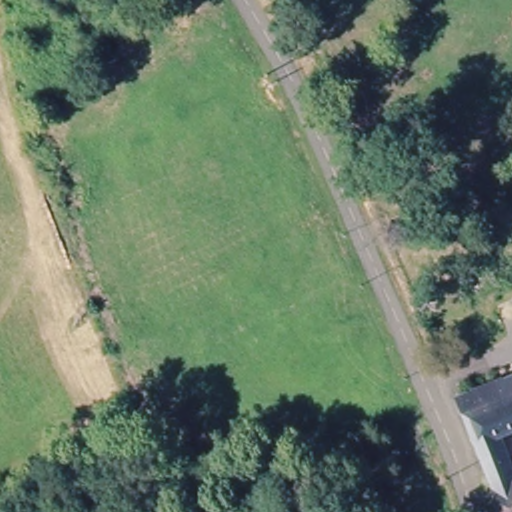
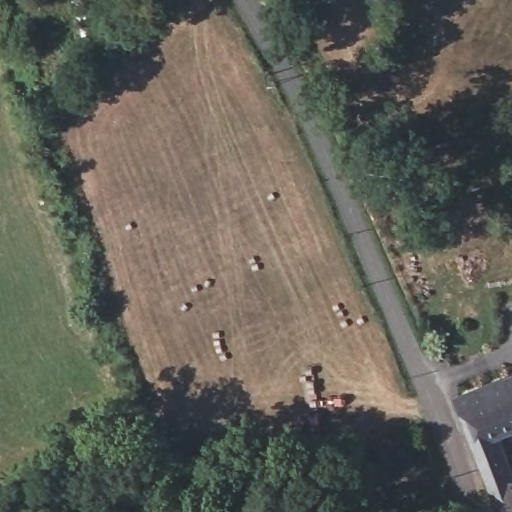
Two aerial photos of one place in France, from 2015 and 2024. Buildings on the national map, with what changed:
unchanged [(512,432),(500,438),(512,474),(512,512),(500,512),(460,395),(512,374),(512,432)]

